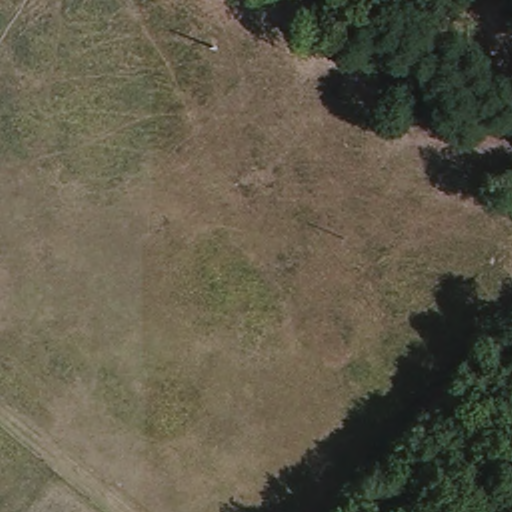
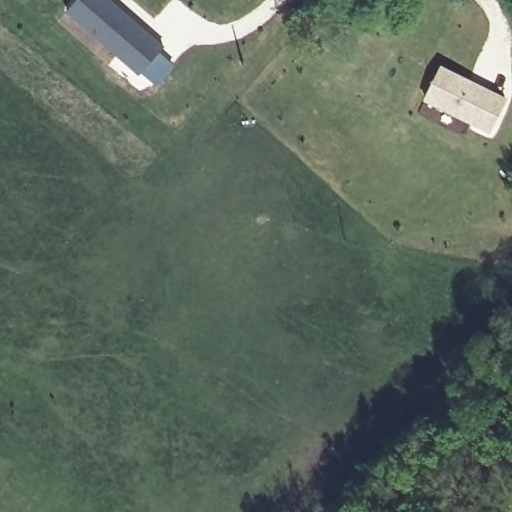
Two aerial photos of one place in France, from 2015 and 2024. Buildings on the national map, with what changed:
new [(74,0),(114,0),(142,24),(164,47),(161,50),(175,64),(155,88),(140,74),(137,77),(64,12),(74,0)]
new [(442,68),(505,99),(490,132),(426,100),(442,68)]

